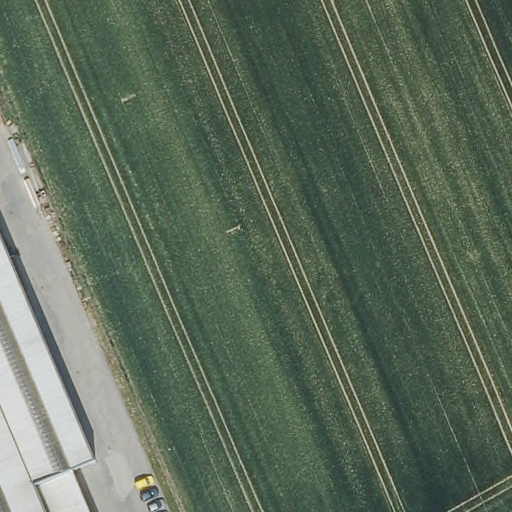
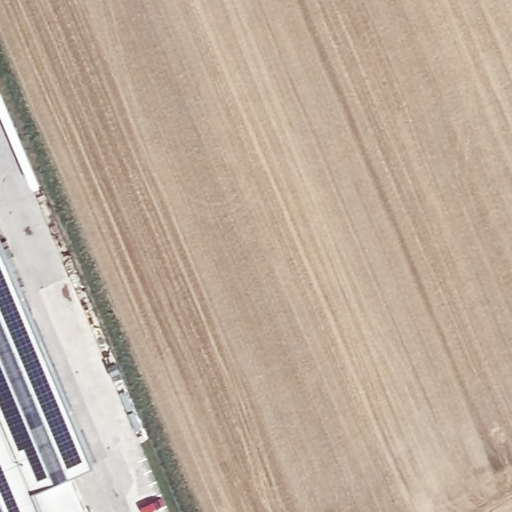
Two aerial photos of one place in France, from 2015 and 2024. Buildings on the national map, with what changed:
unchanged [(77,470),(95,512),(0,512),(0,227),(101,460),(77,470)]

